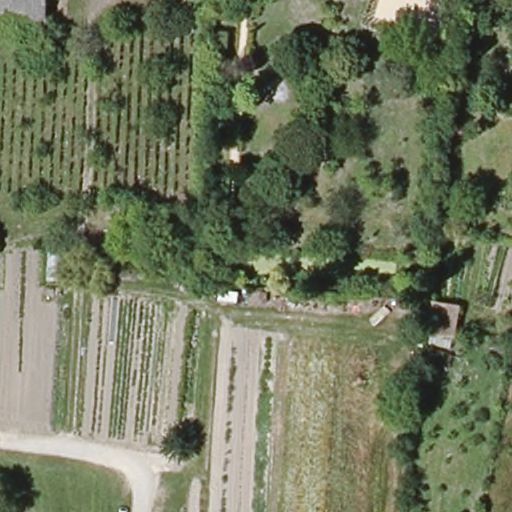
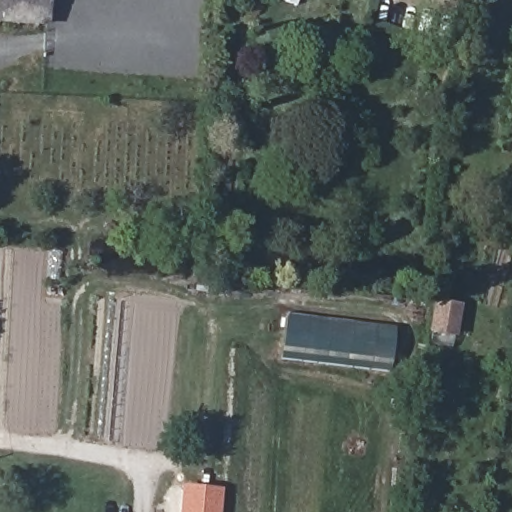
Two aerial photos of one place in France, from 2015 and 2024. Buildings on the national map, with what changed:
unchanged [(48,0),(46,11),(0,4),(0,0),(48,0)]
new [(455,339),(427,333),(433,299),(462,304),(455,339)]
new [(389,371),(280,358),(286,315),(395,328),(389,371)]
new [(221,512),(179,512),(180,491),(192,492),(192,487),(223,488),(221,512)]

